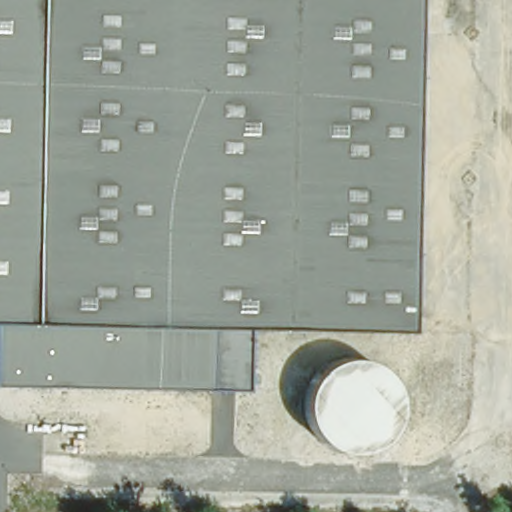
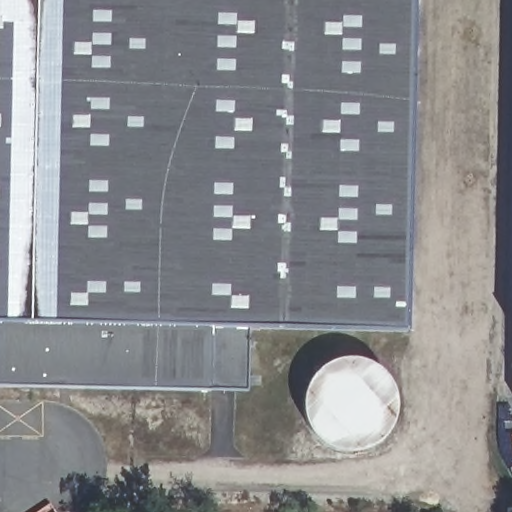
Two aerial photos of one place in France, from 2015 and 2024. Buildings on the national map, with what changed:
unchanged [(248,324),(246,386),(0,378),(0,0),(414,0),(406,329),(248,324)]
unchanged [(353,350),(365,353),(375,358),(384,367),(391,375),(395,385),(397,399),(395,410),(392,420),(383,433),(372,442),(360,447),(346,449),(331,446),(321,440),(313,434),(305,423),(300,411),(298,398),(301,386),(305,375),(315,363),(325,355),(335,352),(343,350),(353,350)]

